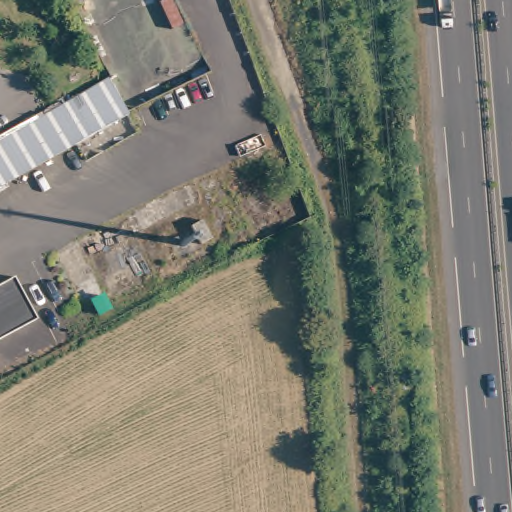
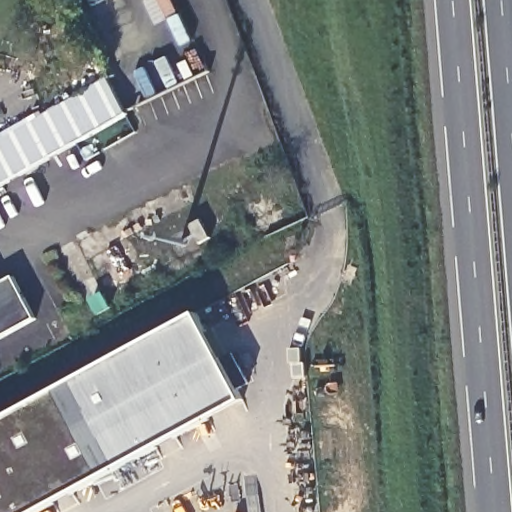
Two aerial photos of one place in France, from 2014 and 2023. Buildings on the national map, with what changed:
unchanged [(103,75),(124,114),(0,182),(0,134),(38,112),(103,75)]
unchanged [(32,316),(0,334),(0,279),(9,274),(32,316)]
new [(40,512),(0,512),(0,422),(198,315),(245,401),(40,512)]

